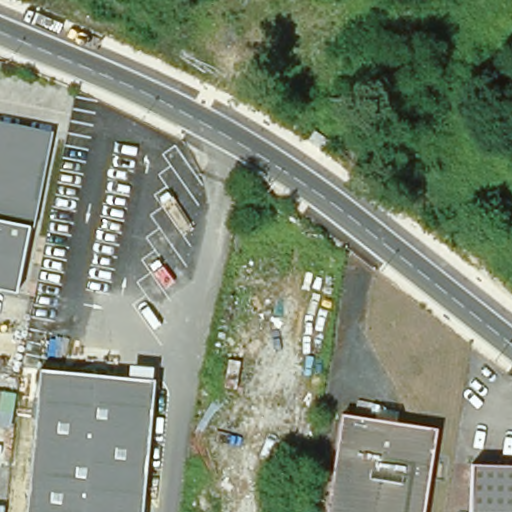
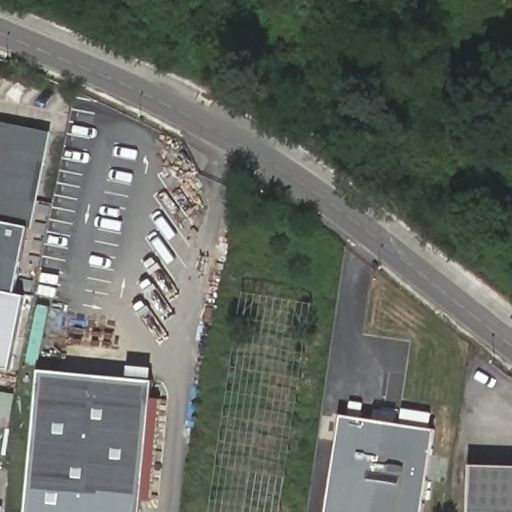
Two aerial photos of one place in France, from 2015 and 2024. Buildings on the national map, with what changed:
unchanged [(14,291),(0,289),(0,123),(45,132),(14,291)]
new [(0,367),(0,289),(14,291),(26,295),(11,369),(0,367)]
unchanged [(95,373),(132,376),(149,377),(138,512),(23,512),(34,378),(34,368),(56,370),(95,373)]
unchanged [(435,426),(431,451),(426,478),(421,512),(323,512),(338,409),(435,426)]
unchanged [(512,466),(512,512),(469,512),(470,465),(512,466)]

